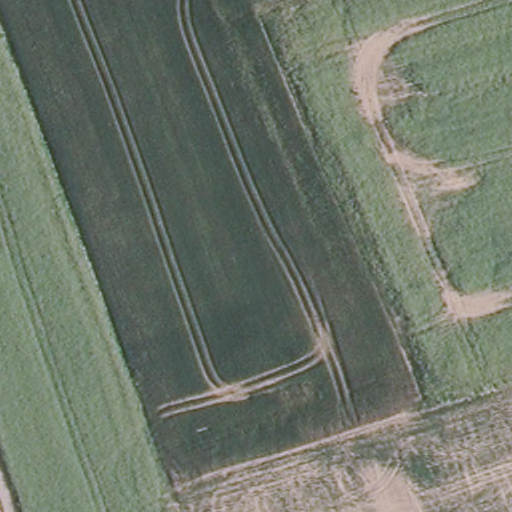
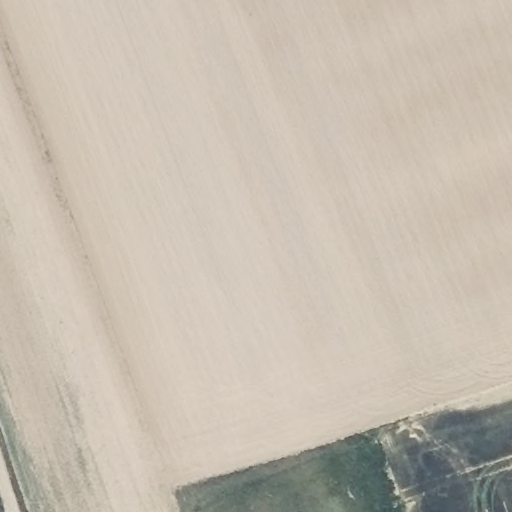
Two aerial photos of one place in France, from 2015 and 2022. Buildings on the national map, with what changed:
[]

